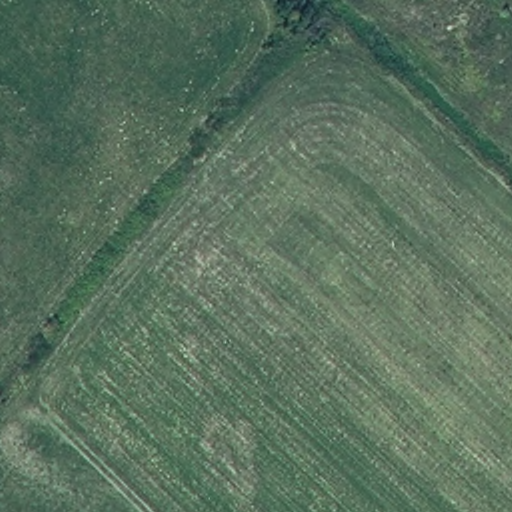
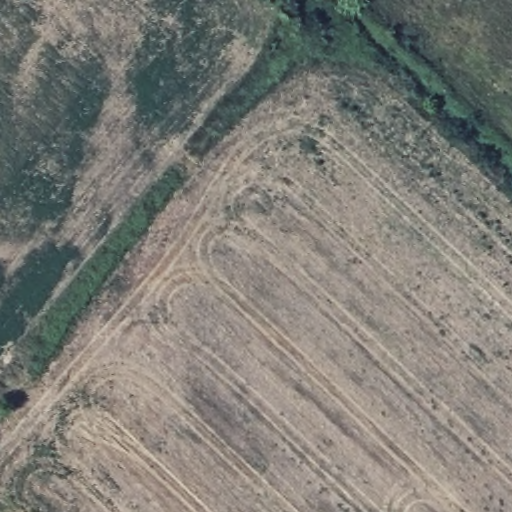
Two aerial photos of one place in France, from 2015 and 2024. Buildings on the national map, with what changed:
[]

